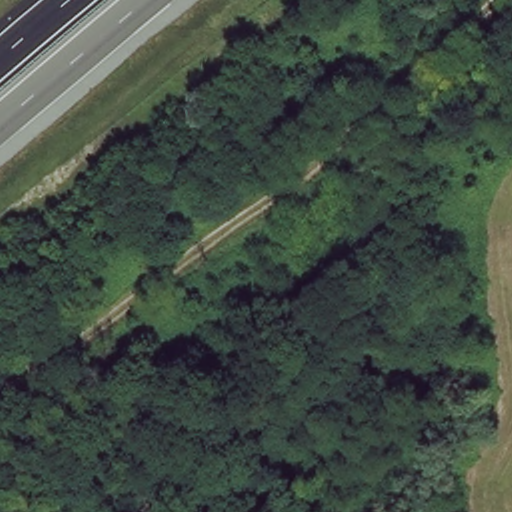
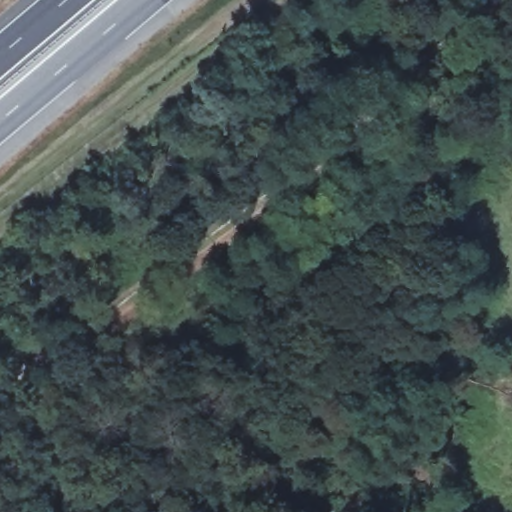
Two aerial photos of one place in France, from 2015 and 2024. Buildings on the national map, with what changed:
[]

